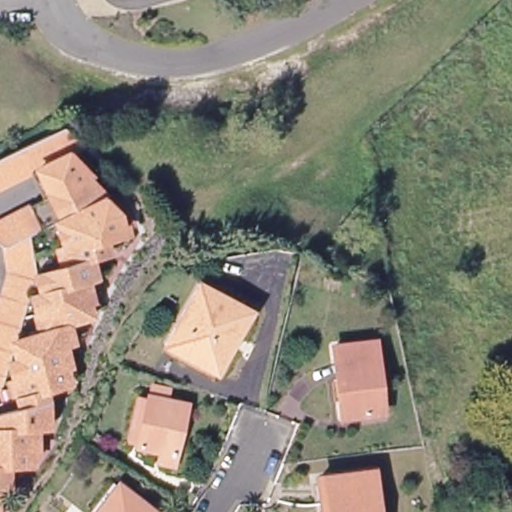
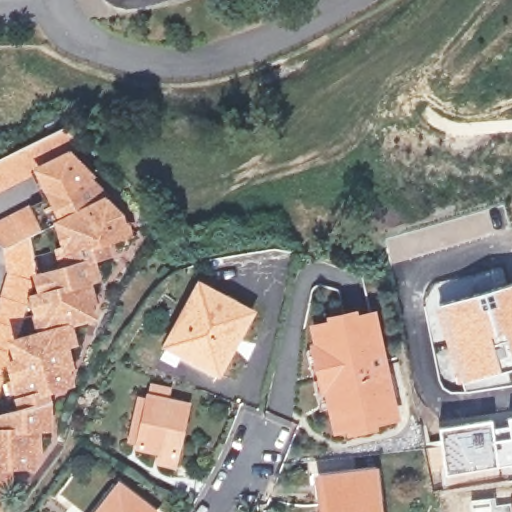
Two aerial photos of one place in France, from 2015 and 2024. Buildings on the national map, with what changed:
unchanged [(141,1),(129,2),(124,0),(123,0),(144,0),(141,1)]
unchanged [(73,156),(59,164),(31,178),(0,193),(0,163),(54,137),(73,156)]
unchanged [(31,178),(59,164),(80,184),(75,188),(97,210),(93,215),(108,229),(112,245),(93,250),(98,268),(79,272),(84,291),(64,297),(73,332),(55,337),(59,356),(40,361),(50,399),(36,403),(39,411),(40,439),(16,440),(19,477),(0,477),(0,226),(43,204),(31,178)]
new [(434,316),(432,304),(512,281),(512,384),(469,392),(455,394),(448,392),(442,388),(438,377),(426,317),(434,316)]
unchanged [(219,375),(165,346),(199,283),(253,311),(219,375)]
new [(400,420),(377,424),(379,429),(347,436),(346,433),(333,433),(324,391),(320,392),(309,343),(311,342),(307,323),(326,319),(324,314),(357,308),(358,312),(376,309),(400,420)]
demolished [(335,347),(375,343),(383,412),(343,417),(341,401),(339,381),(335,347)]
unchanged [(168,389),(166,400),(186,404),(172,465),(159,462),(161,451),(138,446),(139,444),(127,441),(137,395),(149,398),(151,385),(168,389)]
new [(506,423),(505,416),(512,414),(512,467),(499,471),(494,425),(506,423)]
new [(492,418),(494,425),(499,471),(444,479),(437,426),(492,418)]
unchanged [(321,505),(318,481),(374,474),(378,512),(329,512),(328,504),(321,505)]
unchanged [(113,483),(118,487),(119,485),(154,512),(93,512),(91,511),(113,483)]

